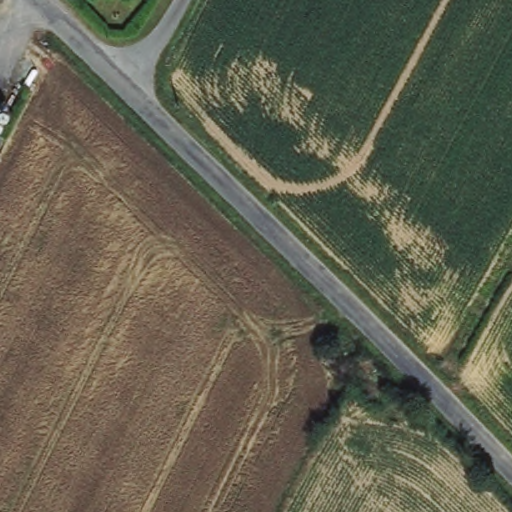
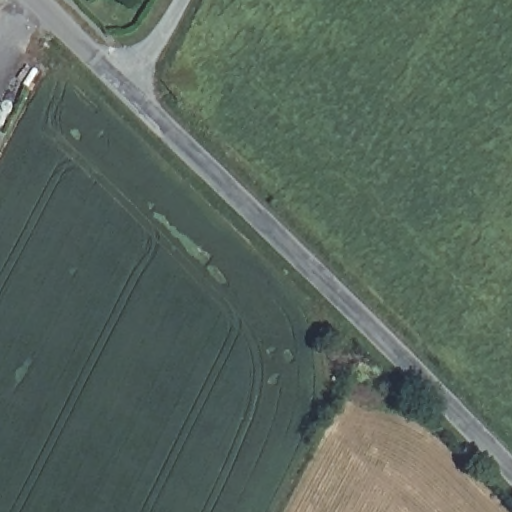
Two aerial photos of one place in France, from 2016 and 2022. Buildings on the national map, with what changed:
unchanged [(4,143),(0,151),(0,140),(4,143)]

